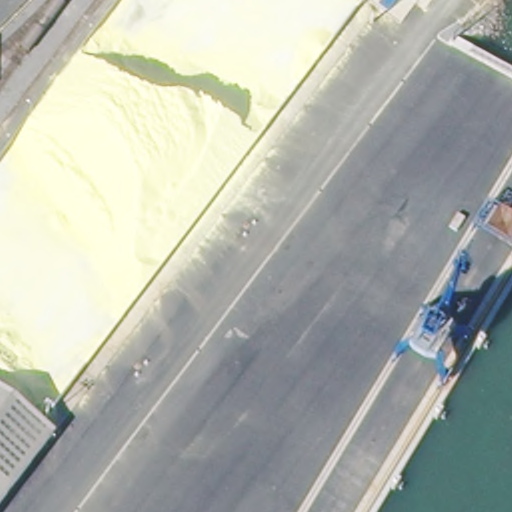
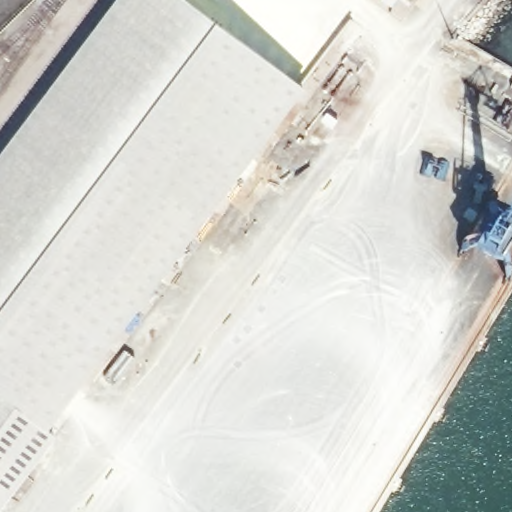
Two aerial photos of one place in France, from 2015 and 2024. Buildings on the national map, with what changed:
new [(47,426),(56,433),(0,506),(0,149),(113,0),(193,0),(304,85),(47,426)]
new [(405,4),(400,0),(408,0),(405,4)]
demolished [(52,436),(48,443),(0,505),(0,397),(52,436)]

